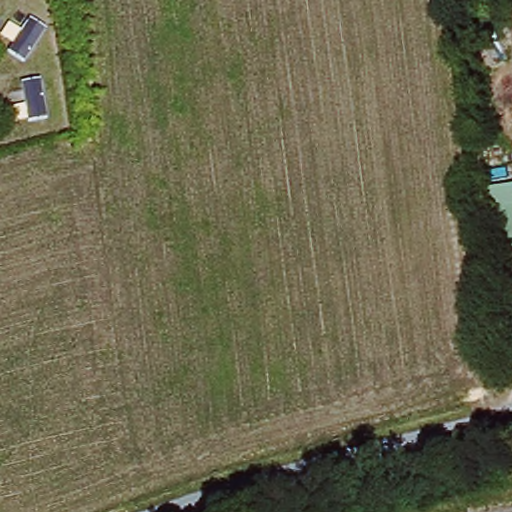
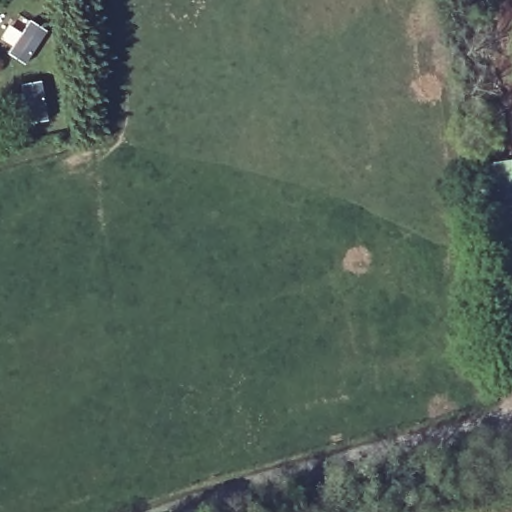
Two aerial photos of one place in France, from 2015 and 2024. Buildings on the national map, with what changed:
unchanged [(27,20),(46,30),(28,64),(9,52),(27,20)]
unchanged [(30,81),(49,90),(34,122),(14,113),(30,81)]
unchanged [(483,190),(512,185),(512,376),(508,376),(483,190)]

